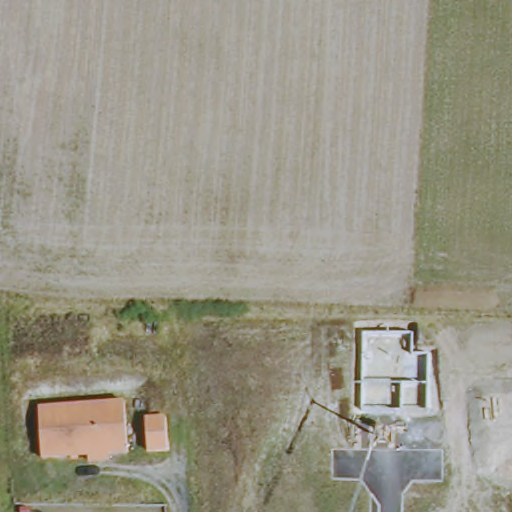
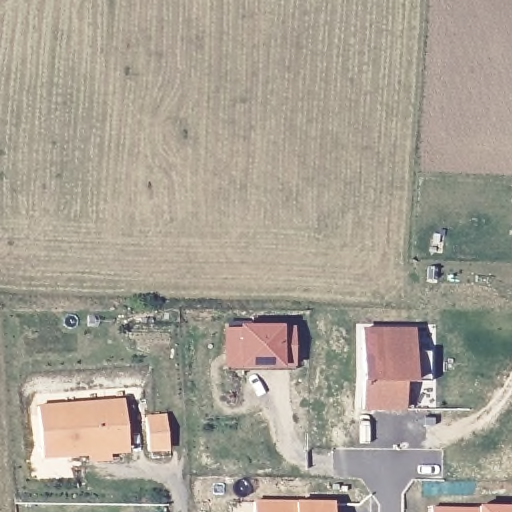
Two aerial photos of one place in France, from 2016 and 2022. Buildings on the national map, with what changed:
new [(234,352),(219,352),(219,328),(286,328),(286,365),(234,365),(234,352)]
unchanged [(362,331),(412,332),(411,354),(427,354),(426,411),(361,411),(362,331)]
unchanged [(96,463),(96,457),(49,461),(46,408),(131,402),(135,454),(114,455),(114,462),(96,463)]
unchanged [(172,419),(173,451),(153,453),(151,419),(172,419)]
new [(247,503),(326,504),(326,512),(246,512),(247,503)]
new [(426,509),(473,509),(473,507),(512,508),(511,512),(425,512),(426,509)]

